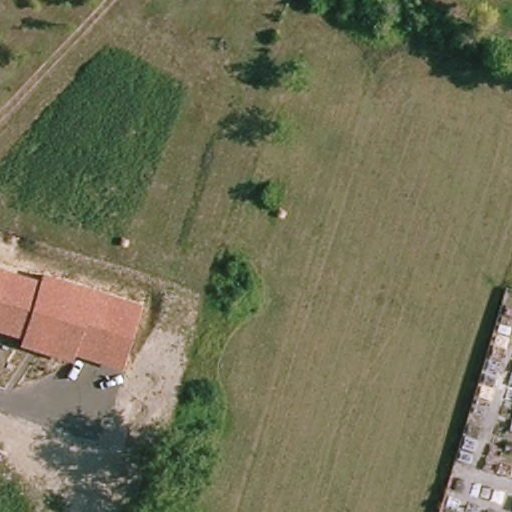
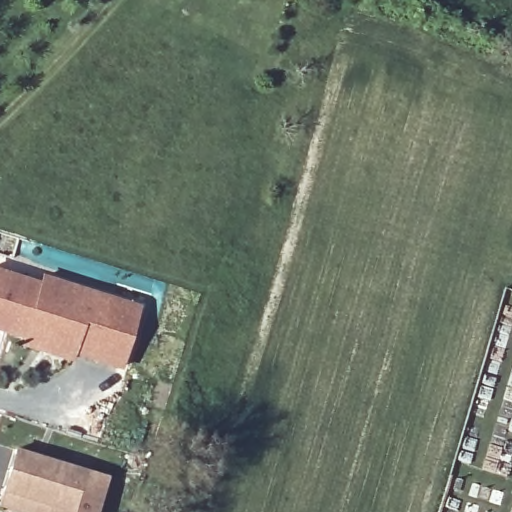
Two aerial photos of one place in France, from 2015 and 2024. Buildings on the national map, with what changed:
unchanged [(42,276),(142,305),(123,370),(74,355),(72,363),(20,346),(22,339),(0,332),(0,269),(40,282),(42,276)]
new [(99,512),(11,512),(0,509),(0,501),(14,448),(109,477),(99,512)]

